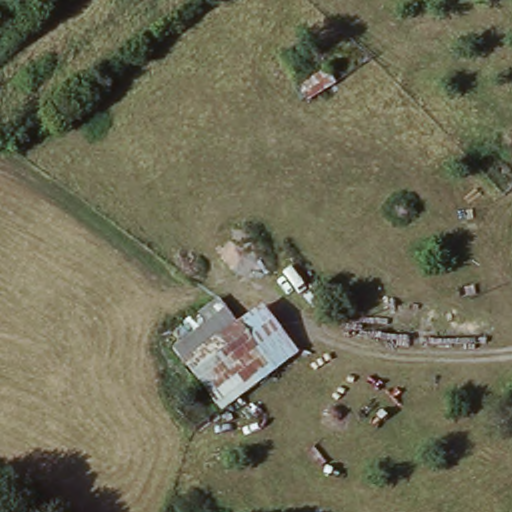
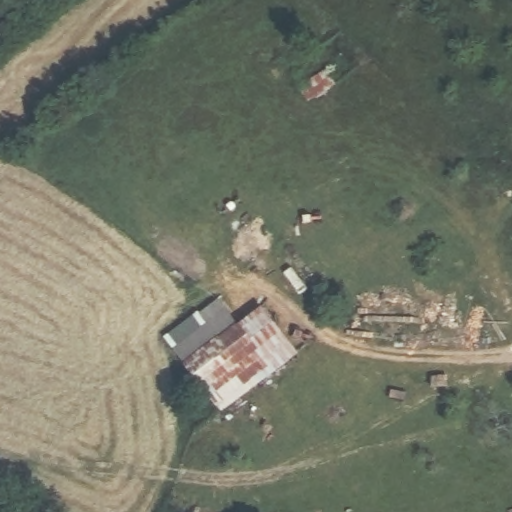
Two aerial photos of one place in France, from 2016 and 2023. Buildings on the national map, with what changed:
unchanged [(164,340),(214,300),(229,320),(256,309),(294,354),(219,410),(164,340)]

